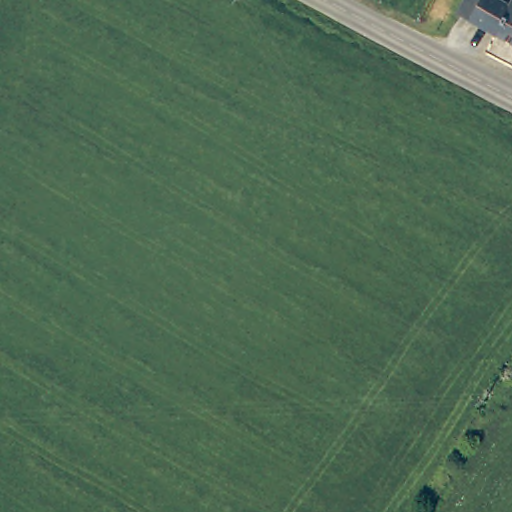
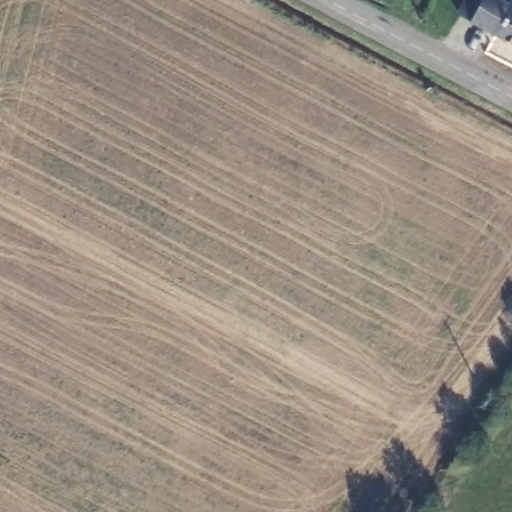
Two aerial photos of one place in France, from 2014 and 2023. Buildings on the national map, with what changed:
unchanged [(509,3),(511,0),(512,0),(512,43),(459,13),(466,0),(503,0),(509,3)]

